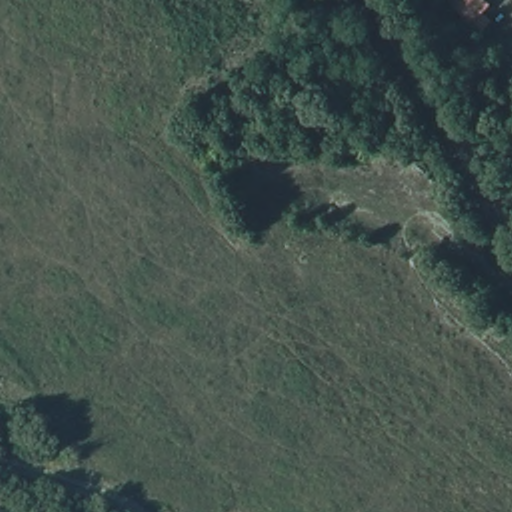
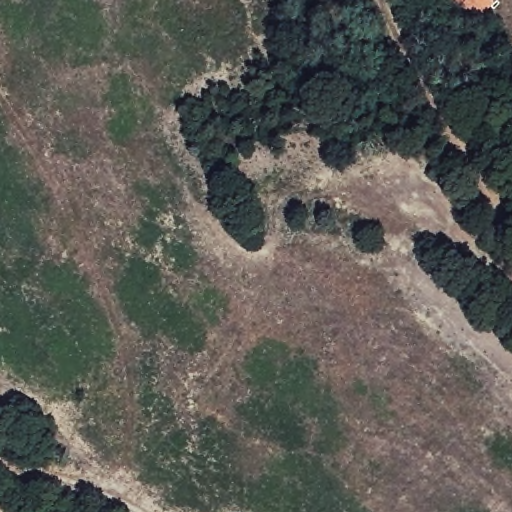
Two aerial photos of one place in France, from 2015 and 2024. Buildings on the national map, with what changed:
unchanged [(494,4),(485,16),(493,23),(481,35),(457,8),(464,0),(490,0),(494,4)]

